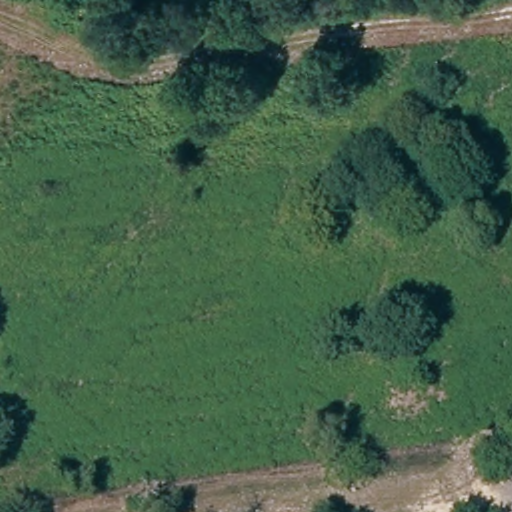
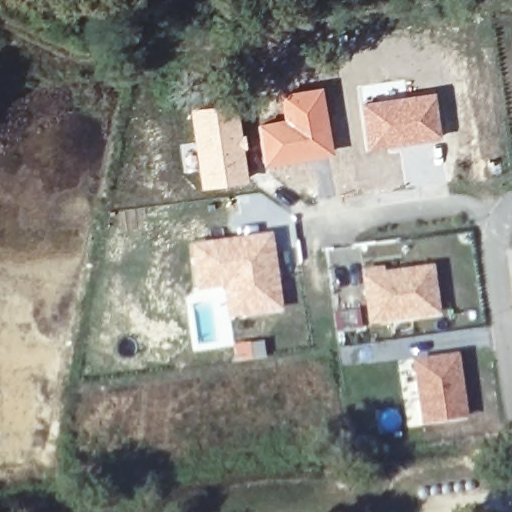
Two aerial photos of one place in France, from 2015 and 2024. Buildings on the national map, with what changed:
new [(283,118),(280,94),(322,86),(333,154),(266,165),(258,123),(283,118)]
new [(440,137),(371,147),(366,106),(435,96),(440,137)]
new [(236,102),(241,135),(245,134),(247,148),(243,149),(248,181),(201,188),(189,108),(236,102)]
new [(189,242),(272,231),(282,309),(227,317),(222,286),(196,290),(189,242)]
new [(384,265),(385,270),(433,264),(440,314),(370,324),(361,269),(384,265)]
new [(458,352),(468,418),(421,425),(412,361),(458,352)]

